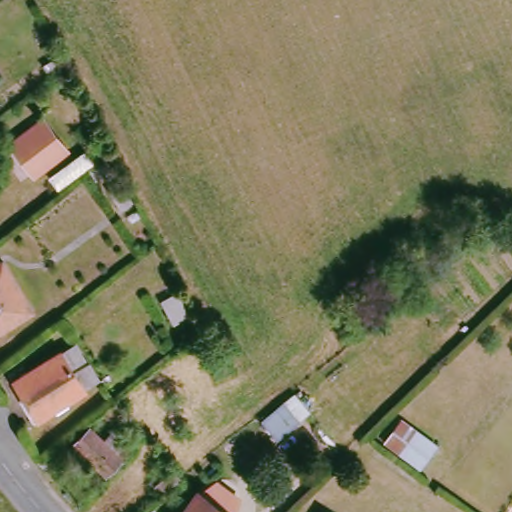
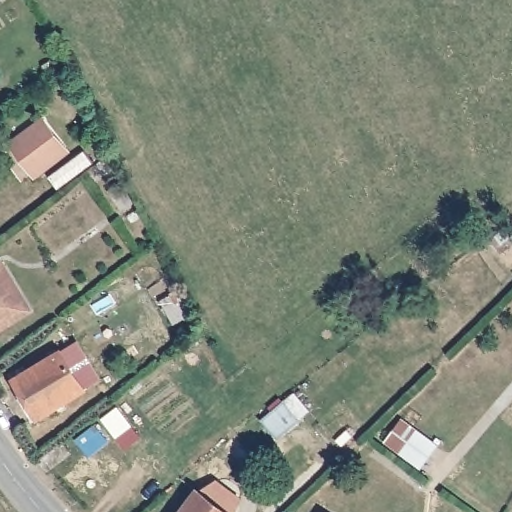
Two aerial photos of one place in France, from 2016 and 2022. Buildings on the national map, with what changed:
unchanged [(67,74),(50,82),(43,69),(60,60),(67,74)]
unchanged [(45,125),(65,155),(35,175),(15,145),(45,125)]
unchanged [(120,167),(96,185),(88,174),(114,155),(120,167)]
unchanged [(0,335),(0,271),(10,265),(37,316),(0,335)]
unchanged [(93,385),(45,415),(23,376),(69,348),(93,385)]
unchanged [(290,395),(312,417),(282,445),(260,422),(290,395)]
unchanged [(437,445),(420,469),(384,442),(401,418),(437,445)]
unchanged [(110,445),(120,436),(130,448),(105,470),(74,438),(90,423),(110,445)]
unchanged [(185,481),(164,498),(150,480),(171,462),(185,481)]
unchanged [(202,495),(225,512),(189,512),(202,495)]

